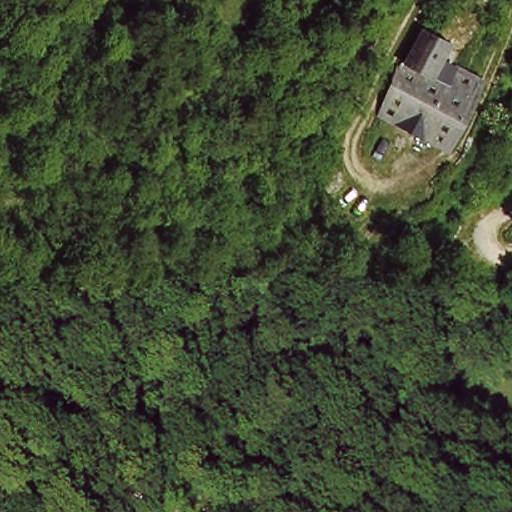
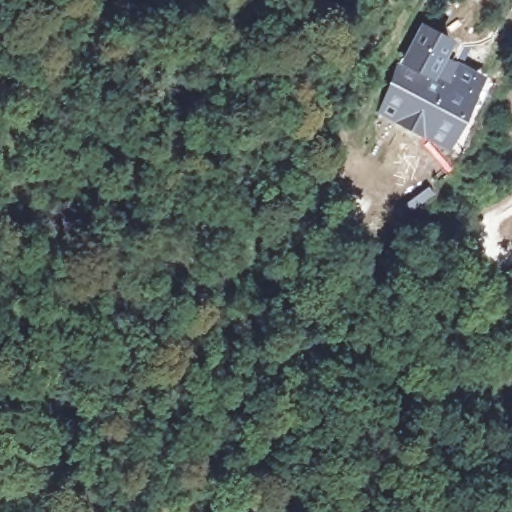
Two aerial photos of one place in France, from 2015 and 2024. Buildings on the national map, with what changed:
unchanged [(429,23),(455,38),(442,63),(480,84),(453,139),(392,108),(408,66),(429,23)]

